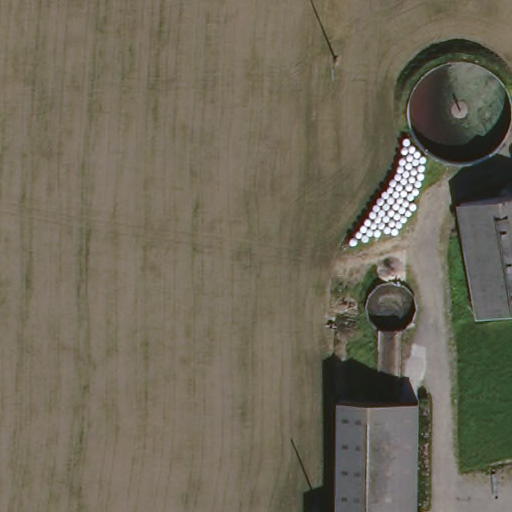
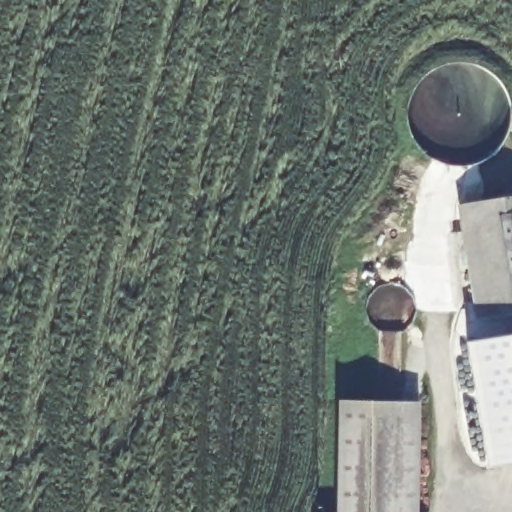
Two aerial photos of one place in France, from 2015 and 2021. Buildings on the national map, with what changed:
unchanged [(470,320),(453,207),(512,198),(512,313),(470,320)]
new [(465,342),(512,334),(512,463),(487,467),(465,342)]
unchanged [(336,512),(325,408),(405,399),(418,512),(336,512)]

